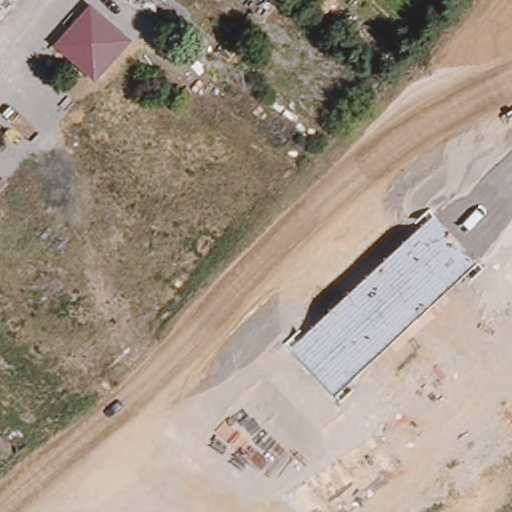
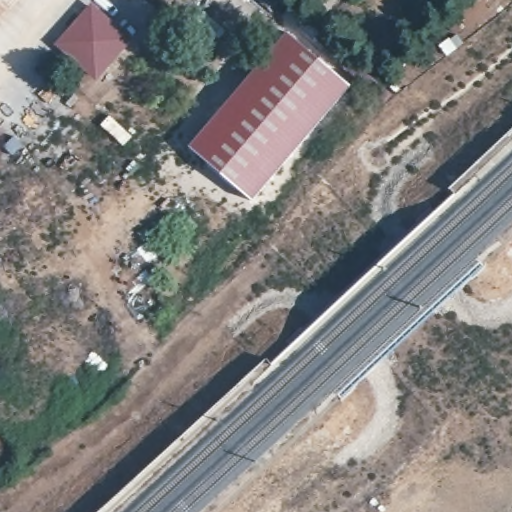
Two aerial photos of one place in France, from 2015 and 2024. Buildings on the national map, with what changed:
unchanged [(436,24),(420,11),(430,0),(449,0),(455,5),(436,24)]
unchanged [(50,46),(87,1),(132,38),(92,83),(50,46)]
unchanged [(423,20),(406,36),(396,26),(412,12),(423,20)]
new [(253,202),(189,147),(287,31),(351,86),(253,202)]
unchanged [(382,54),(368,69),(356,56),(370,41),(382,54)]

